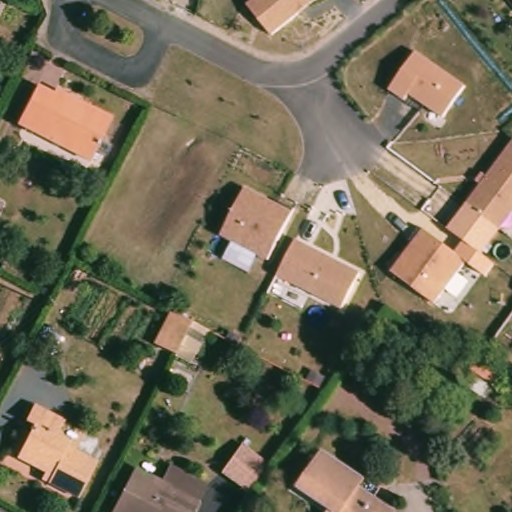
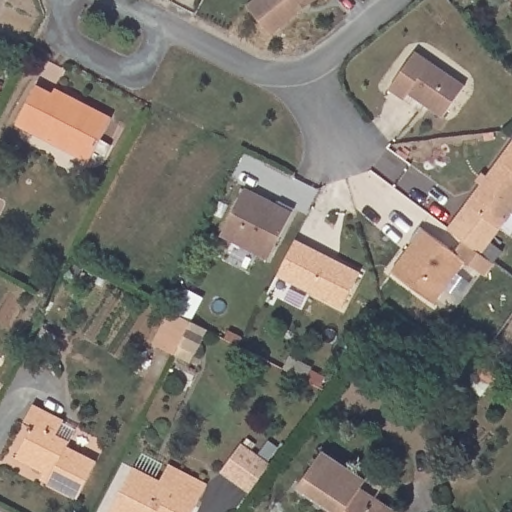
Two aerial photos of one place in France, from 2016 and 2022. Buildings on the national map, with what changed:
unchanged [(273,36),(248,5),(253,0),(317,0),(273,36)]
unchanged [(467,87),(444,118),(411,95),(405,101),(392,91),(418,51),(467,87)]
unchanged [(17,126),(36,89),(54,98),(58,89),(94,107),(114,118),(90,163),(17,126)]
unchanged [(512,141),(512,217),(502,231),(466,203),(512,141)]
unchanged [(294,209),(269,261),(223,238),(245,186),(294,209)]
unchanged [(466,259),(437,302),(393,273),(424,228),(466,259)]
unchanged [(363,272),(344,311),(279,278),(298,240),(363,272)]
unchanged [(185,345),(180,353),(173,349),(151,337),(169,306),(189,317),(209,328),(197,351),(185,345)]
unchanged [(64,443),(96,461),(77,498),(45,481),(50,470),(15,452),(30,423),(24,421),(33,403),(64,420),(58,431),(68,436),(64,443)]
unchanged [(273,462),(252,496),(221,475),(243,441),(273,462)]
unchanged [(304,490),(330,454),(364,477),(357,488),(393,512),(332,512),(334,510),(304,490)]
unchanged [(116,512),(110,509),(134,470),(158,484),(170,464),(211,488),(197,512),(116,512)]

